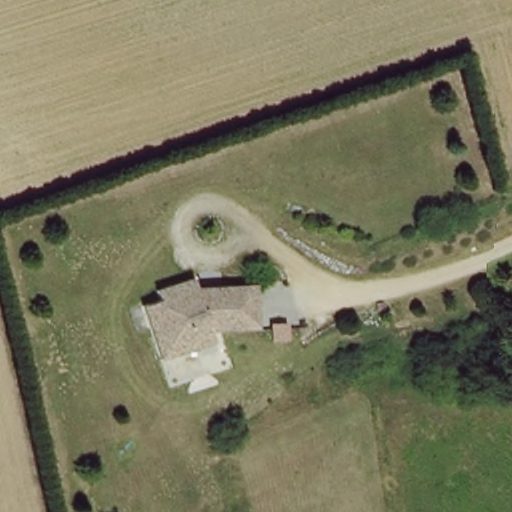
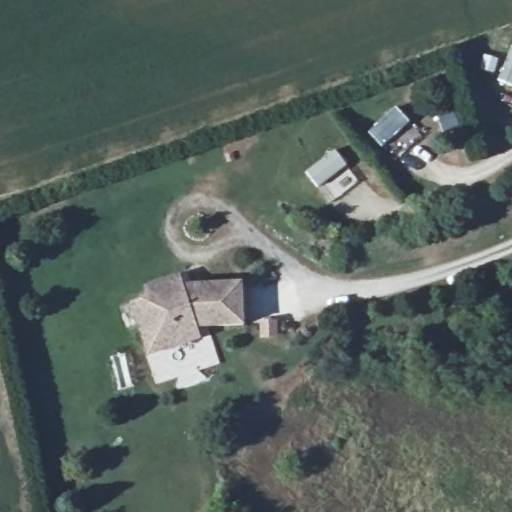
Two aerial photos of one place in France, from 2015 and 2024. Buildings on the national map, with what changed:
new [(512,47),(512,89),(497,83),(511,47),(512,47)]
new [(396,108),(408,124),(381,149),(367,134),(396,108)]
unchanged [(177,348),(142,359),(125,306),(142,301),(139,291),(174,280),(177,290),(236,287),(237,329),(190,331),(191,333),(194,343),(177,348)]

